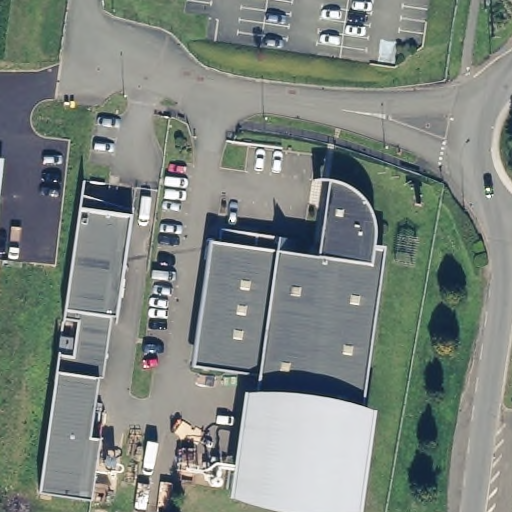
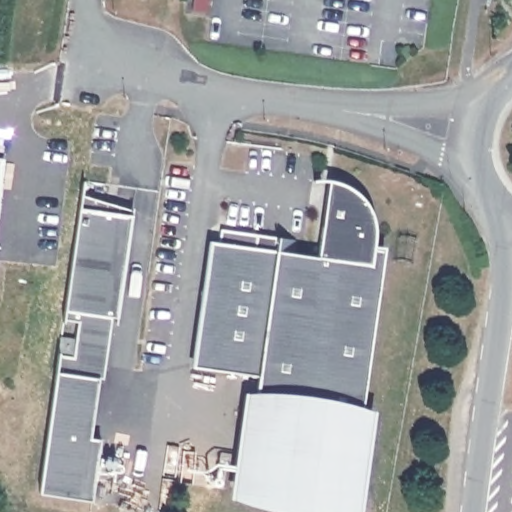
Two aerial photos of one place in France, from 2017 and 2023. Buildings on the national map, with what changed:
unchanged [(2,157),(0,171),(0,157),(2,157)]
unchanged [(84,197),(137,205),(122,306),(112,305),(103,367),(94,427),(104,428),(95,490),(43,482),(84,197)]
unchanged [(289,245),(288,257),(310,258),(315,232),(320,240),(327,230),(324,223),(318,210),(326,204),(338,202),(349,211),(360,210),(370,228),(363,266),(373,273),(345,511),(237,497),(253,385),(195,375),(213,249),(215,237),(252,241),(289,245)]

